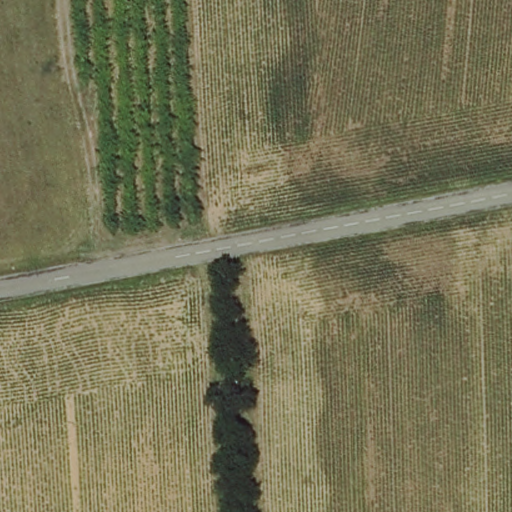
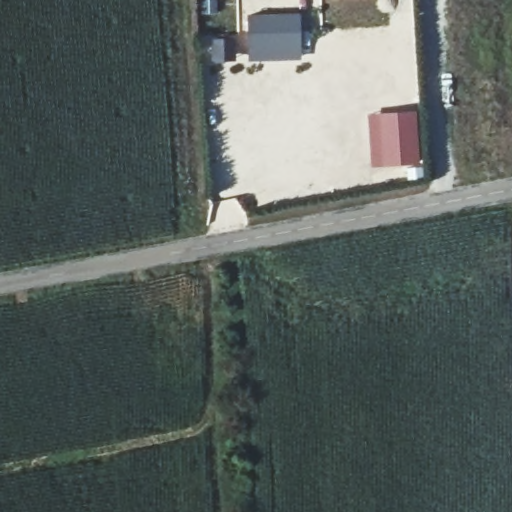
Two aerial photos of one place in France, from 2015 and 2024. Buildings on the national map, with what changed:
new [(248,50),(248,18),(297,16),(298,49),(299,59),(249,60),(248,50)]
new [(213,55),(212,41),(232,40),(233,55),(233,60),(213,61),(213,55)]
new [(416,109),(422,176),(408,178),(406,166),(370,167),(365,113),(416,109)]

